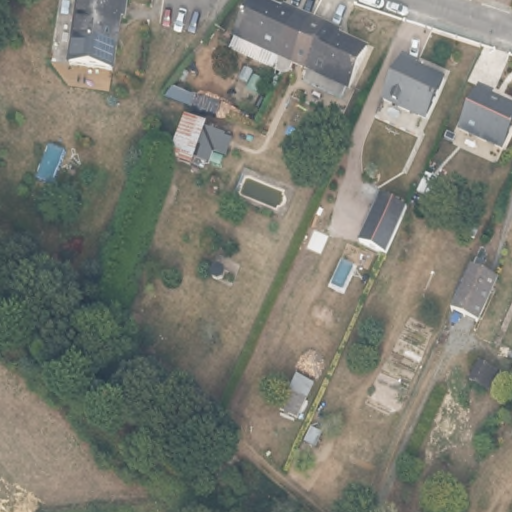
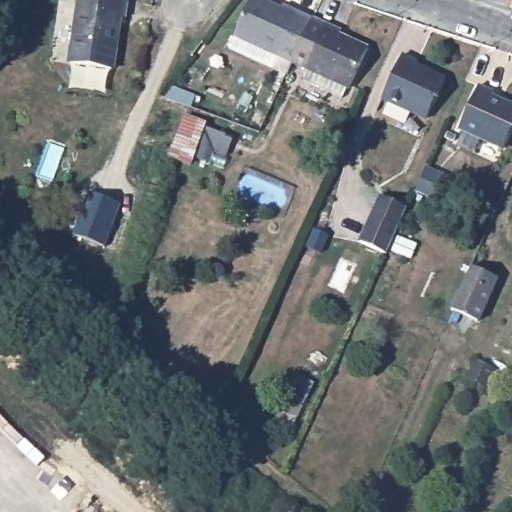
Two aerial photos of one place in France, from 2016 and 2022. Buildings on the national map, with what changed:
unchanged [(111,70),(69,64),(79,0),(110,0),(126,2),(124,19),(119,18),(111,70)]
unchanged [(292,62),(234,36),(251,0),(258,0),(281,11),(283,6),(312,19),(292,62)]
unchanged [(303,81),(308,70),(292,62),(312,19),(340,32),(338,37),(367,50),(349,89),(347,88),(341,98),(303,81)]
unchanged [(426,119),(382,99),(402,55),(416,62),(414,67),(443,80),(426,119)]
unchanged [(459,129),(479,86),(493,93),(491,97),(512,107),(512,129),(503,149),(459,129)]
unchanged [(225,154),(212,150),(208,163),(173,150),(185,115),(204,123),(202,129),(231,139),(225,154)]
new [(88,192),(118,202),(103,246),(74,235),(88,192)]
unchanged [(385,253),(358,241),(379,195),(405,207),(385,253)]
unchanged [(450,310),(470,266),(487,274),(496,278),(490,292),(477,321),(450,310)]
unchanged [(483,386),(470,379),(479,362),(492,369),(483,386)]

